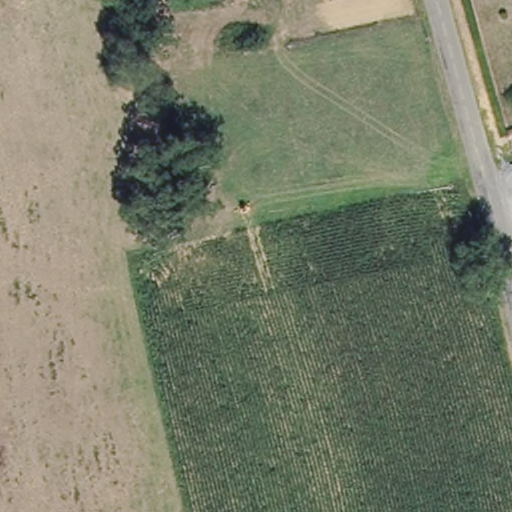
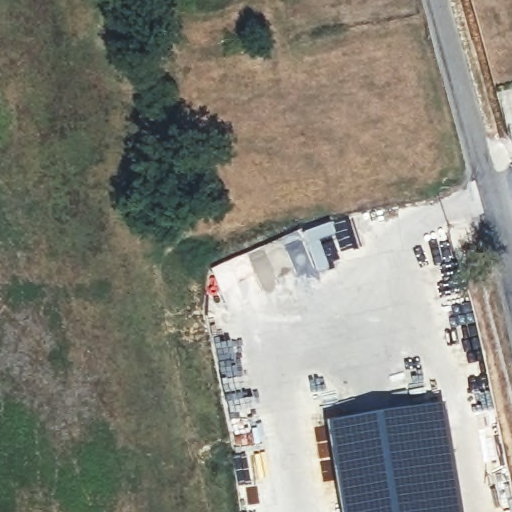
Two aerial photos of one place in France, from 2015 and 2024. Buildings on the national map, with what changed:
new [(445,407),(461,512),(340,512),(326,425),(445,407)]

